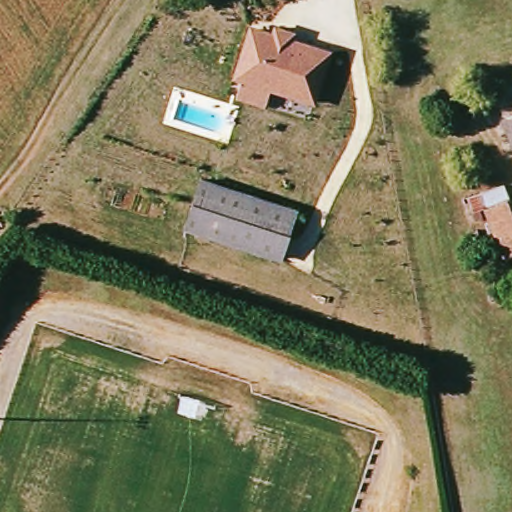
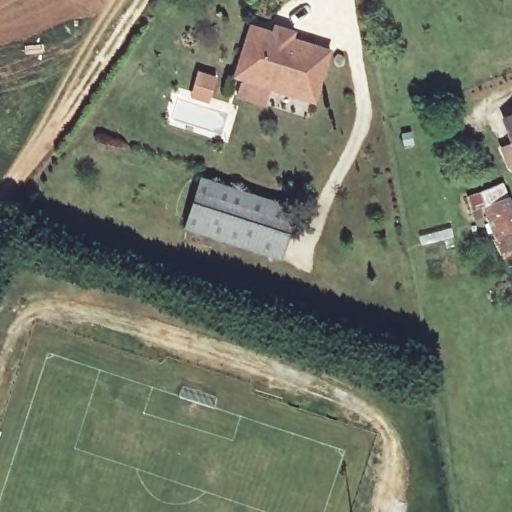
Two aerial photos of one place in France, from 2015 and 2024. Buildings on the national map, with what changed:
unchanged [(271,89),(266,107),(236,98),(242,80),(233,77),(250,22),(272,29),(274,23),(299,30),(297,36),(333,47),(315,103),(271,89)]
unchanged [(509,126),(507,121),(512,119),(512,134),(509,126)]
unchanged [(200,174),(300,207),(283,259),(185,227),(200,174)]
unchanged [(482,203),(507,194),(512,206),(512,243),(501,248),(482,203)]

